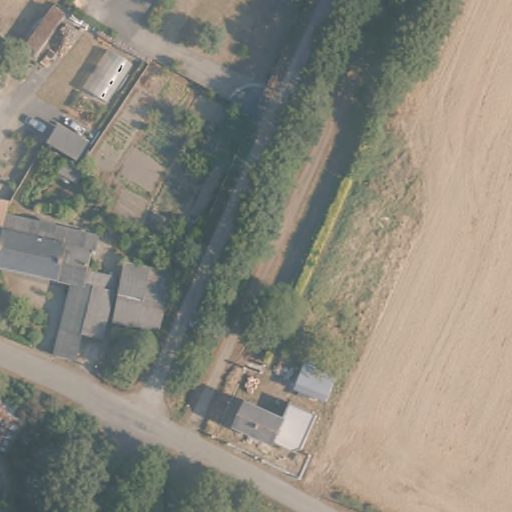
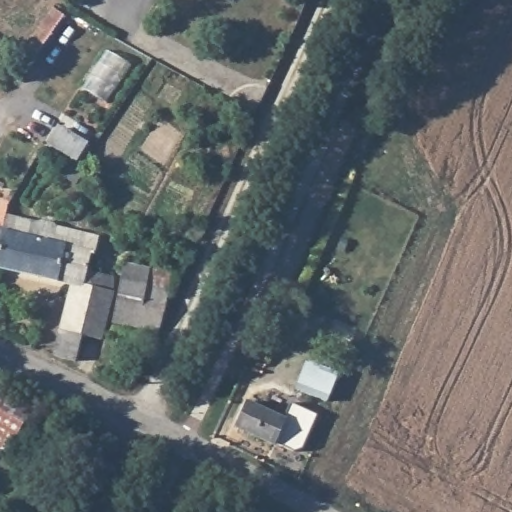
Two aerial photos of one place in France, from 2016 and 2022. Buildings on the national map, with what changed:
unchanged [(125,17),(115,34),(74,5),(78,0),(150,0),(135,23),(125,17)]
unchanged [(96,237),(88,268),(114,275),(114,290),(103,341),(83,337),(77,368),(55,359),(71,289),(0,272),(0,212),(96,237)]
unchanged [(160,336),(118,328),(116,317),(124,265),(144,269),(172,275),(169,289),(160,336)]
unchanged [(295,431),(309,397),(298,393),(310,364),(338,376),(325,406),(312,438),(295,431)]
unchanged [(35,411),(17,451),(14,454),(0,447),(0,398),(1,395),(35,411)]
unchanged [(284,417),(281,424),(291,429),(285,441),(275,437),(272,442),(236,424),(248,401),(284,417)]
unchanged [(63,500),(58,512),(2,512),(18,479),(63,500)]

